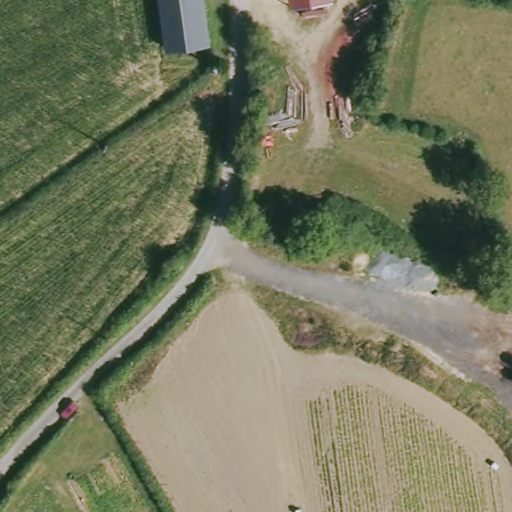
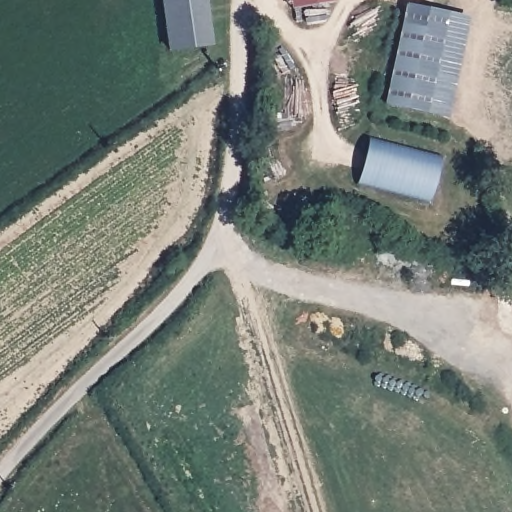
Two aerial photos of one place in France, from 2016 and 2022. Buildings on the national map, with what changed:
unchanged [(170,46),(166,0),(205,0),(207,45),(170,46)]
unchanged [(290,9),(288,0),(334,0),(335,2),(290,9)]
new [(426,113),(385,104),(405,4),(446,11),(426,113)]
new [(357,180),(368,136),(440,155),(430,199),(357,180)]

